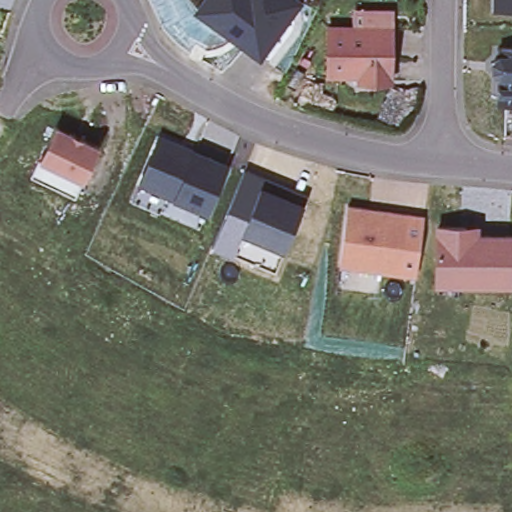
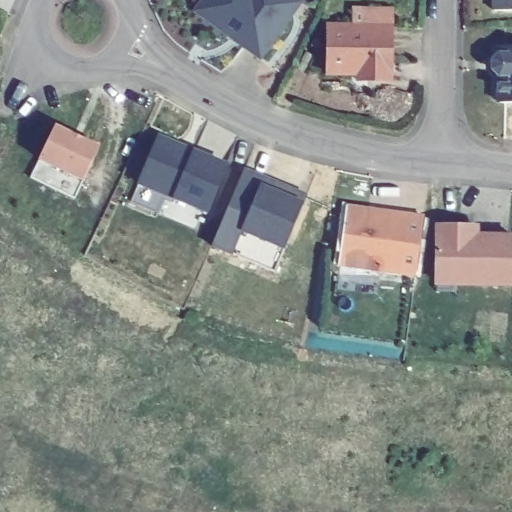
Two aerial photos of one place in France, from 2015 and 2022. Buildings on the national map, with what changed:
unchanged [(238,46),(238,40),(232,35),(226,37),(193,14),(203,0),(292,0),(298,5),(288,18),(257,60),(238,46)]
unchanged [(492,8),(492,0),(512,0),(512,8),(492,8)]
unchanged [(356,72),(326,72),(326,23),(390,24),(389,79),(366,78),(356,78),(356,72)]
unchanged [(497,73),(491,67),(492,58),(498,52),(498,45),(512,45),(512,100),(497,100),(497,73)]
unchanged [(81,179),(36,158),(52,124),(97,145),(81,179)]
unchanged [(134,200),(141,181),(161,134),(180,142),(183,149),(195,154),(196,149),(230,163),(210,210),(170,193),(162,211),(134,200)]
unchanged [(215,243),(246,168),(246,169),(267,177),(265,181),(278,186),(280,183),(310,195),(278,270),(215,243)]
unchanged [(345,204),(367,207),(375,208),(407,212),(400,271),(337,263),(345,204)]
unchanged [(436,289),(436,261),(437,224),(465,225),(475,225),(475,234),(512,234),(512,281),(453,281),(453,289),(436,289)]

